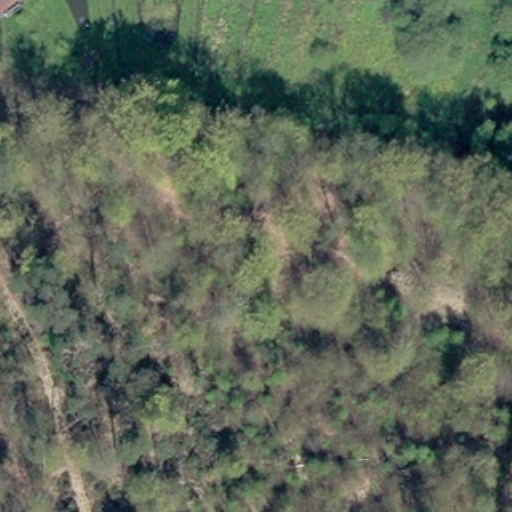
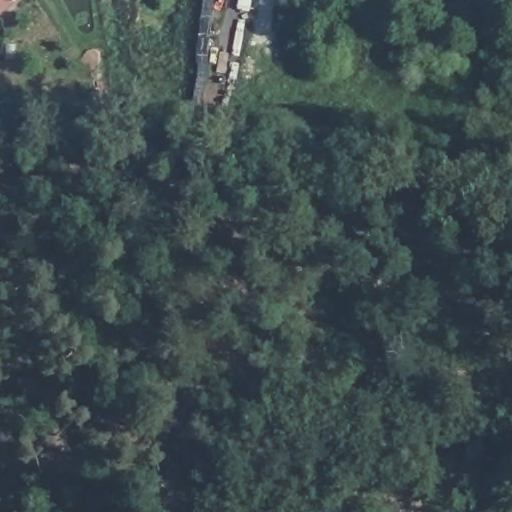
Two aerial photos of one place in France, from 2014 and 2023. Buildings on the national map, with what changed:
unchanged [(0,0),(19,0),(0,15),(0,0)]

